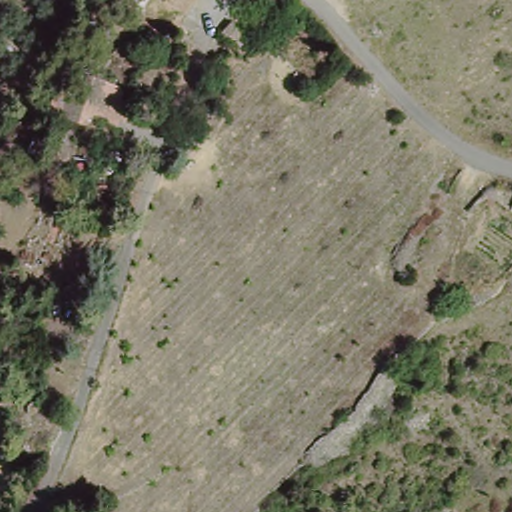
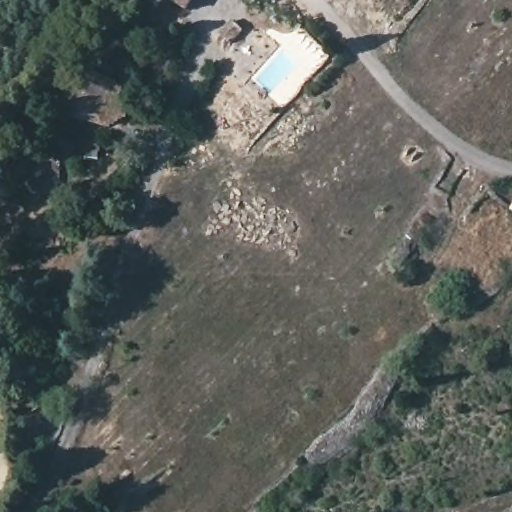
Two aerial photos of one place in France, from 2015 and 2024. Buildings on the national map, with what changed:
unchanged [(99,0),(129,0),(117,14),(99,0)]
unchanged [(156,0),(191,0),(178,17),(156,0)]
unchanged [(236,29),(250,41),(239,57),(223,43),(236,29)]
unchanged [(125,89),(116,129),(47,111),(61,71),(125,89)]

